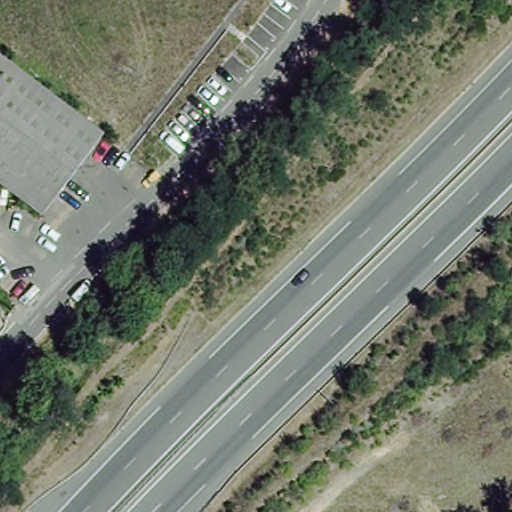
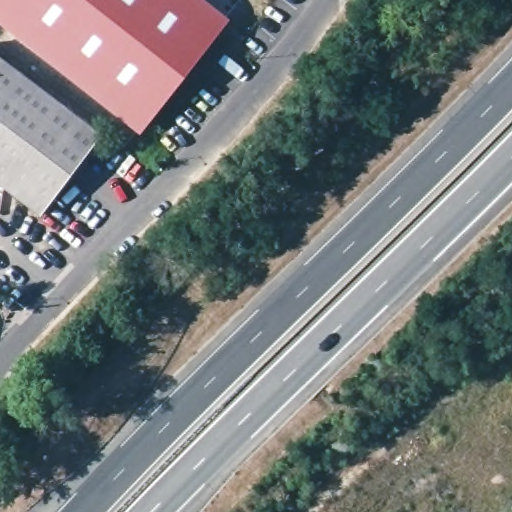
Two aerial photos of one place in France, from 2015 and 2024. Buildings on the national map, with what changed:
new [(140,134),(48,63),(0,24),(0,0),(206,0),(230,18),(140,134)]
unchanged [(0,179),(0,57),(101,127),(40,207),(0,179)]

